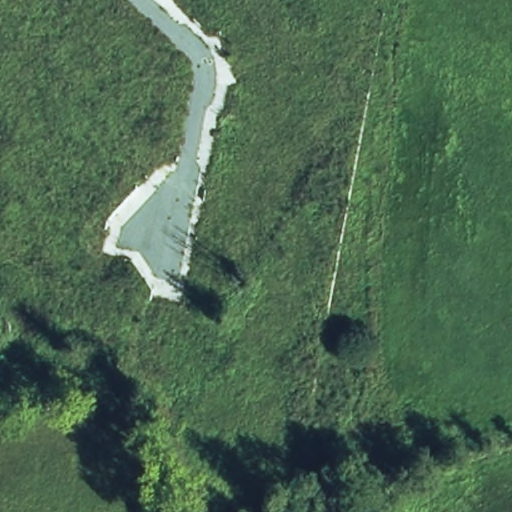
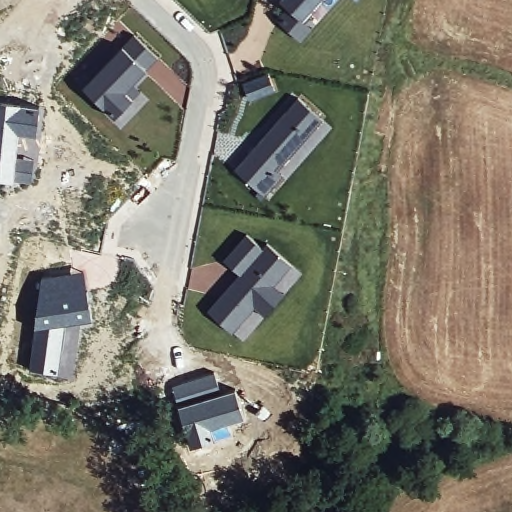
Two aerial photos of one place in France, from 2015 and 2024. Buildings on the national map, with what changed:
new [(322,0),(303,20),(313,27),(300,42),(277,20),(287,9),(277,0),(322,0)]
new [(352,0),(358,0),(355,3),(352,0)]
new [(182,106),(172,99),(145,72),(135,84),(142,93),(117,121),(82,87),(134,34),(159,57),(187,85),(182,106)]
new [(267,71),(277,91),(250,102),(242,81),(267,71)]
new [(297,97),(332,128),(265,198),(231,167),(297,97)]
new [(39,139),(22,137),(20,152),(37,156),(33,184),(0,180),(0,101),(42,106),(39,139)]
new [(222,258),(247,232),(265,248),(269,244),(302,273),(242,342),(205,310),(239,275),(222,258)]
new [(40,277),(84,270),(93,323),(80,325),(74,380),(28,372),(40,277)]
new [(245,417),(214,428),(217,438),(190,446),(177,405),(171,385),(214,371),(220,391),(235,387),(245,417)]

